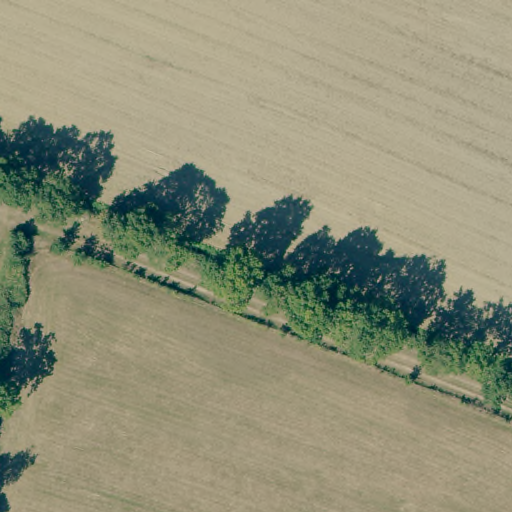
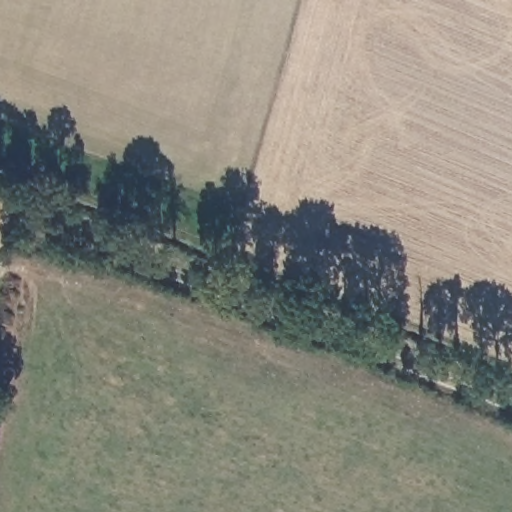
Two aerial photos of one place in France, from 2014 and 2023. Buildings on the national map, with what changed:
[]

